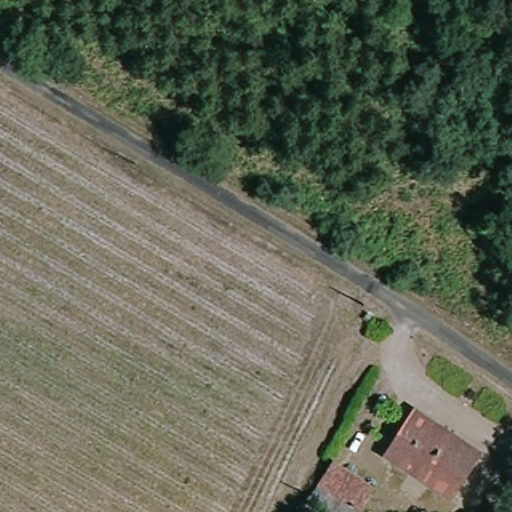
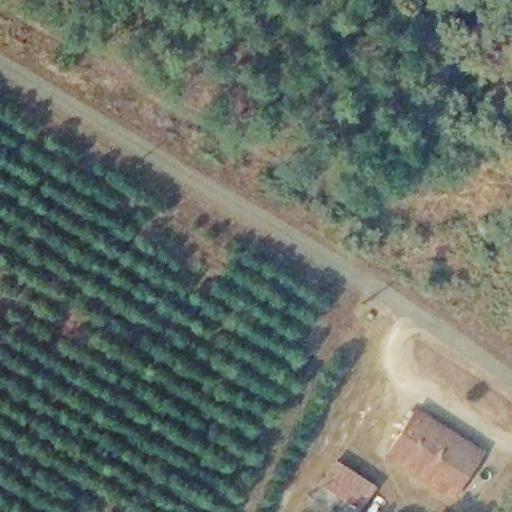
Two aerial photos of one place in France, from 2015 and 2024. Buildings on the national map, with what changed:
unchanged [(387,448),(424,403),(485,454),(448,499),(387,448)]
unchanged [(312,495),(340,460),(369,483),(353,503),(363,512),(332,512),(312,495)]

